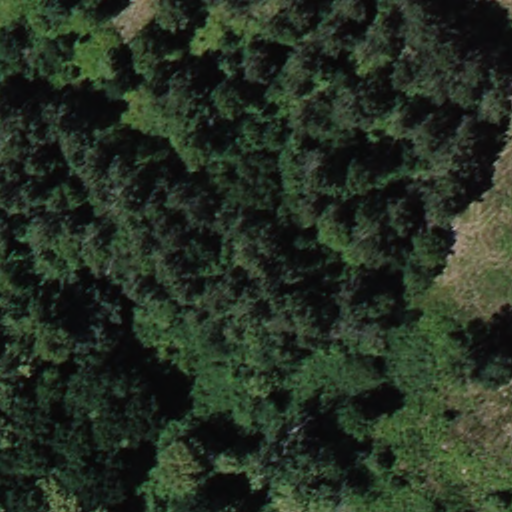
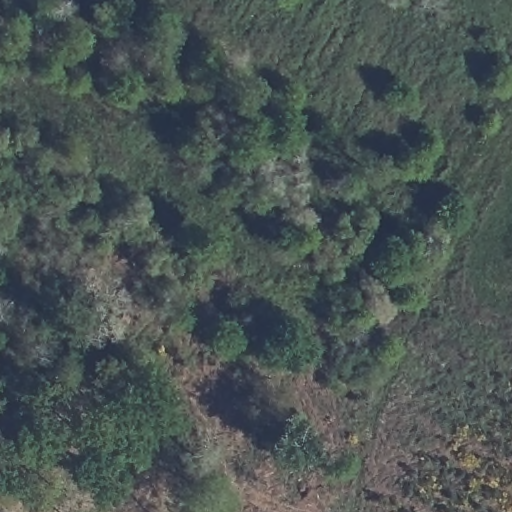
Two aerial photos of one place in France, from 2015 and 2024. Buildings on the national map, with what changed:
[]

